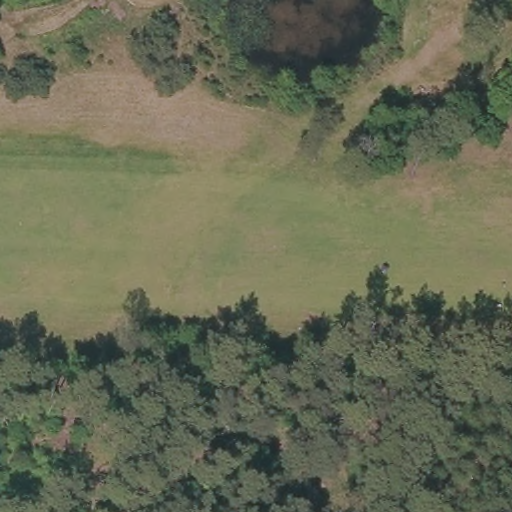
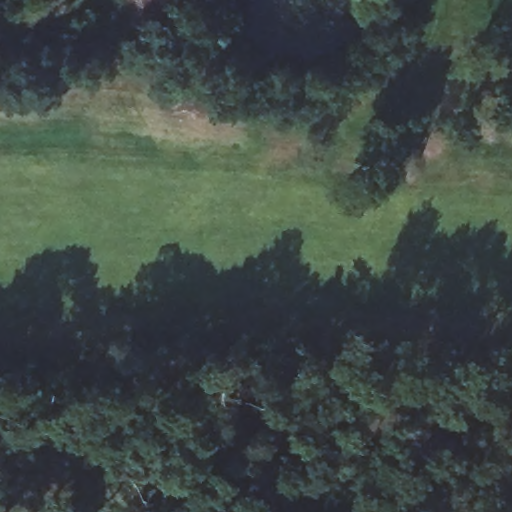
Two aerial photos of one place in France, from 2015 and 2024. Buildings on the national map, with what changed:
[]

